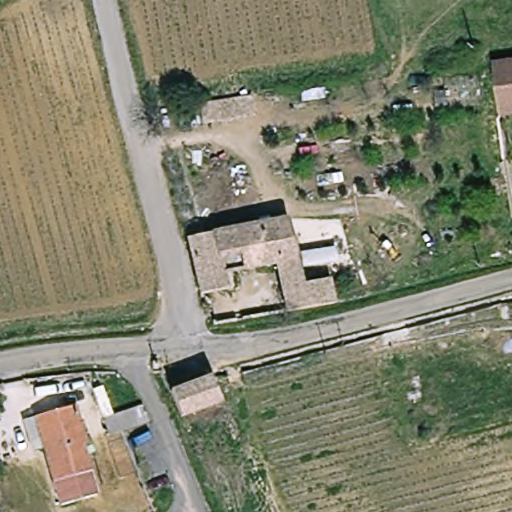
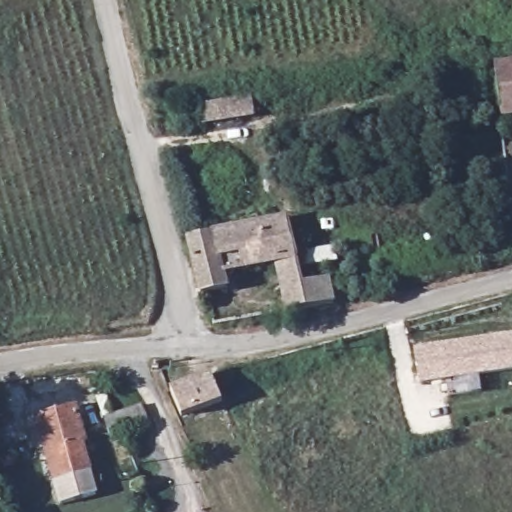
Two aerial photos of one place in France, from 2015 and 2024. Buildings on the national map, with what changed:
unchanged [(512,56),(512,116),(499,118),(492,59),(512,56)]
unchanged [(281,222),(297,285),(326,279),(334,307),(286,315),(274,268),(226,280),(228,295),(200,301),(184,243),(281,222)]
new [(417,385),(412,348),(512,334),(512,370),(417,385)]
unchanged [(223,400),(182,417),(171,393),(208,376),(223,400)]
unchanged [(100,414),(153,398),(161,422),(107,437),(100,414)]
unchanged [(30,416),(75,399),(91,442),(83,445),(98,496),(56,508),(30,416)]

